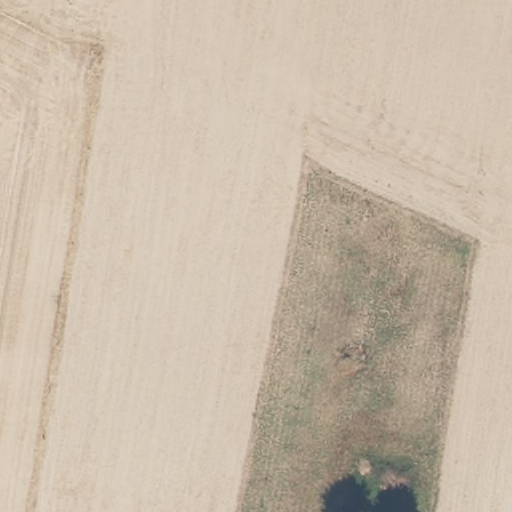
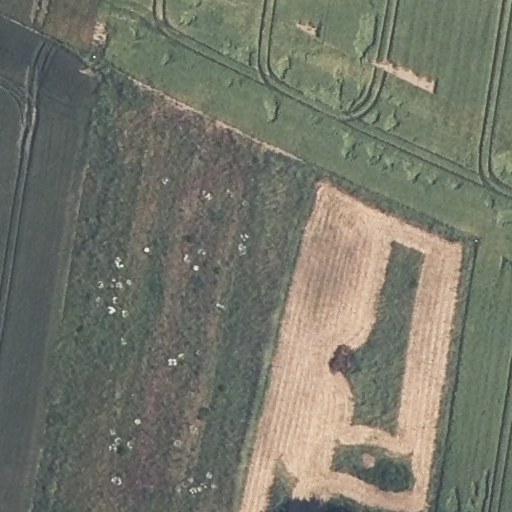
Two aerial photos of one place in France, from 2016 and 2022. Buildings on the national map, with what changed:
[]

